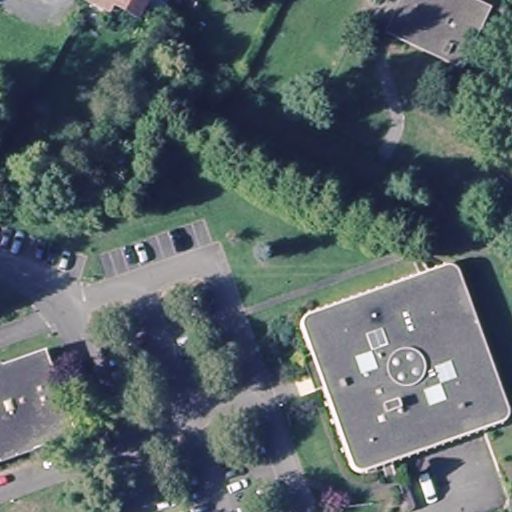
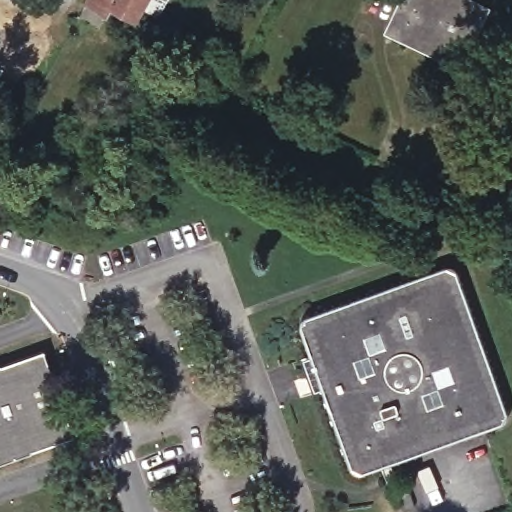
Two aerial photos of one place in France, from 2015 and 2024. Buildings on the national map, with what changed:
unchanged [(158,19),(139,9),(133,19),(107,4),(102,13),(84,3),(86,0),(169,0),(158,19)]
unchanged [(401,39),(387,32),(403,0),(464,0),(486,11),(468,48),(459,66),(443,59),(401,39)]
unchanged [(451,267),(453,267),(456,267),(458,268),(461,270),(463,274),(464,279),(475,314),(501,391),(510,415),(510,418),(509,421),(508,424),(506,427),(504,428),(500,430),(395,466),(363,475),(360,474),(356,472),(354,470),(352,468),(351,465),(309,333),(307,330),(306,327),(306,323),(308,320),(310,317),(314,314),(318,314),(424,276),(451,267)]
unchanged [(0,466),(0,369),(43,354),(76,437),(0,466)]

